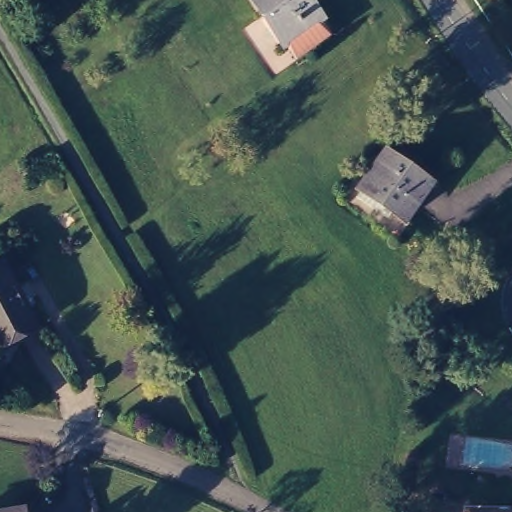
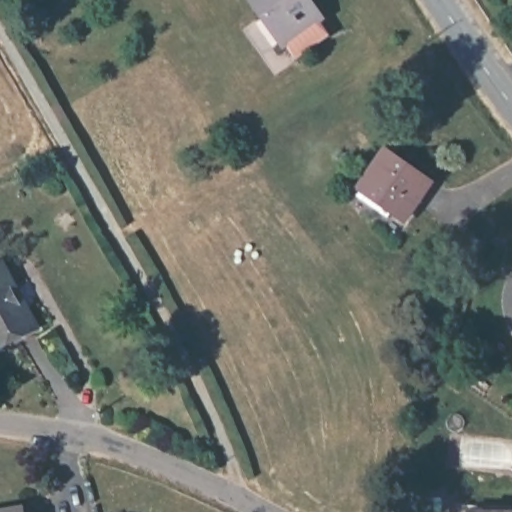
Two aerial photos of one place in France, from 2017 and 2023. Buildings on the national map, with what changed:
unchanged [(319,5),(329,21),(296,45),(284,29),(284,30),(263,0),(317,0),(320,4),(319,5)]
unchanged [(361,189),(365,182),(359,179),(386,142),(430,174),(404,210),(393,202),(389,209),(361,189)]
unchanged [(7,267),(39,328),(0,348),(0,347),(0,271),(7,267)]
unchanged [(29,505),(30,512),(0,512),(0,510),(29,505)]
unchanged [(469,506),(512,507),(512,512),(468,512),(469,506)]

